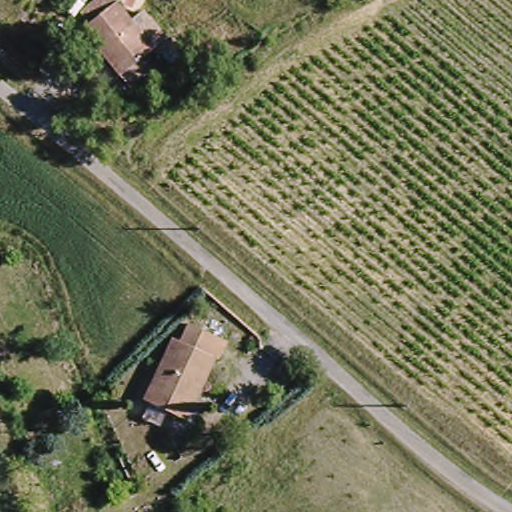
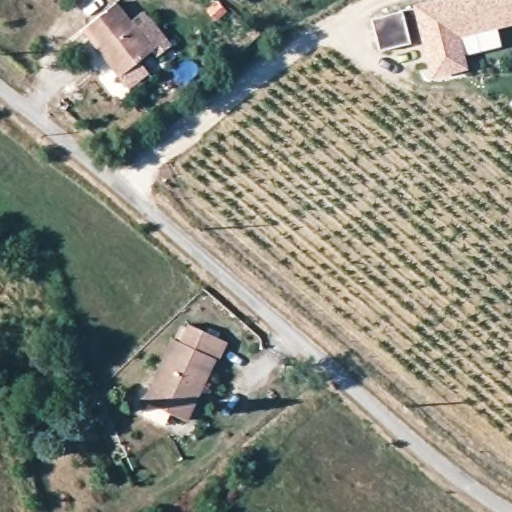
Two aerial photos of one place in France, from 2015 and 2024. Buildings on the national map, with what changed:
new [(467,70),(429,78),(413,5),(431,0),(512,0),(512,25),(460,38),(467,70)]
unchanged [(175,50),(163,61),(155,51),(122,77),(85,31),(117,5),(142,36),(155,26),(175,50)]
new [(410,44),(378,51),(370,18),(402,11),(410,44)]
unchanged [(188,421),(145,402),(175,342),(186,345),(194,330),(230,344),(221,364),(215,364),(205,384),(198,385),(186,407),(191,416),(188,421)]

